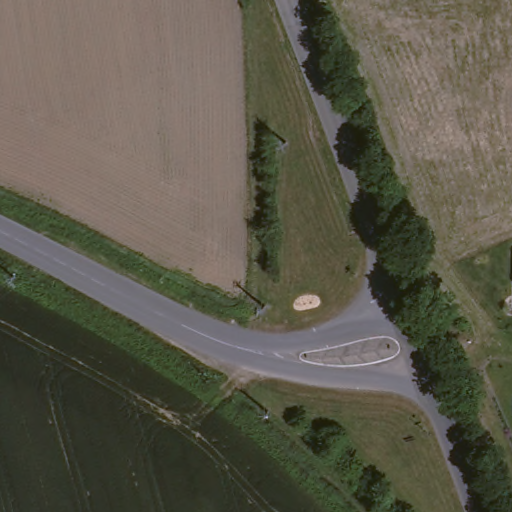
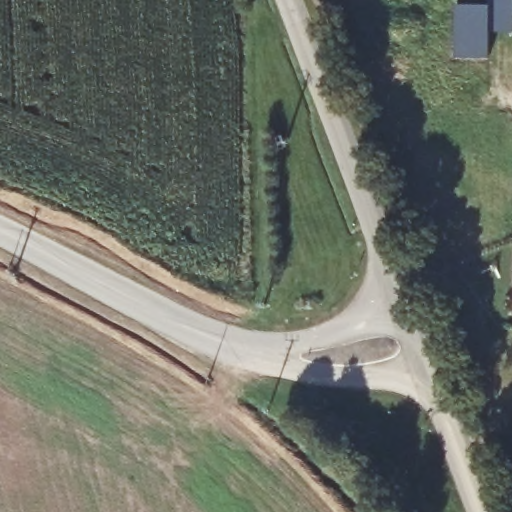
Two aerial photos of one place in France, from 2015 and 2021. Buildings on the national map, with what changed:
new [(455,57),(457,6),(489,7),(489,0),(512,0),(512,20),(489,20),(488,60),(455,57)]

